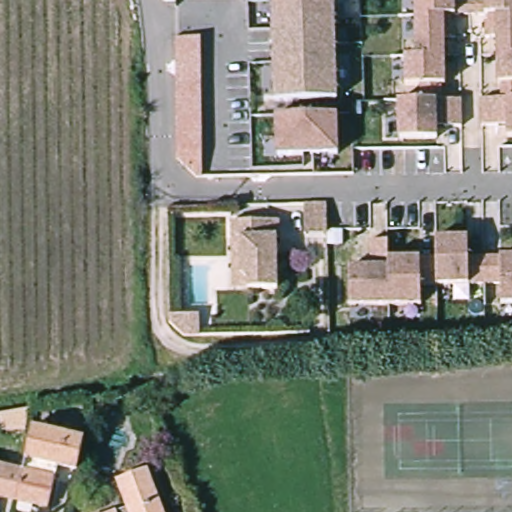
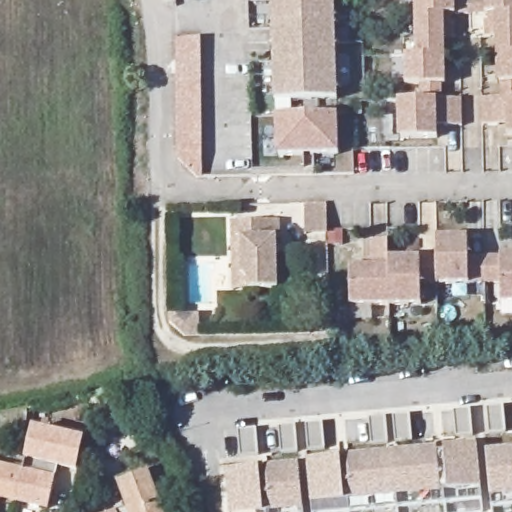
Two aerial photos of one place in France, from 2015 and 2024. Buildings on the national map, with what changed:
unchanged [(269,0),(330,0),(330,90),(268,90),(269,0)]
unchanged [(415,15),(415,0),(455,0),(470,0),(470,14),(444,14),(434,14),(415,15)]
unchanged [(470,0),(512,0),(512,12),(496,13),(470,14),(470,0)]
unchanged [(496,36),(485,37),(485,22),(496,21),(496,13),(512,12),(512,52),(497,53),(496,36)]
unchanged [(445,23),(456,23),(457,38),(446,38),(446,54),(435,54),(416,55),(415,15),(434,14),(444,14),(445,23)]
unchanged [(196,35),(199,175),(194,176),(174,156),(171,36),(196,35)]
unchanged [(502,82),(498,82),(497,53),(512,52),(512,97),(502,97),(502,82)]
unchanged [(422,84),(407,84),(406,55),(416,55),(435,54),(446,54),(447,84),(443,84),(443,99),(436,99),(422,99),(422,84)]
unchanged [(502,97),(512,97),(512,135),(508,135),(508,124),(483,124),(482,98),(502,97)]
unchanged [(439,125),(439,137),(437,137),(401,138),(400,99),(422,99),(436,99),(443,99),(463,98),(464,125),(439,125)]
unchanged [(273,115),(335,115),(335,155),(273,155),(273,115)]
unchanged [(326,233),(302,233),(302,213),(302,203),(325,203),(326,233)]
unchanged [(436,237),(435,217),(467,217),(468,237),(484,236),(485,263),(437,264),(436,237)]
unchanged [(351,287),(350,248),(371,248),(370,222),(387,221),(388,239),(389,285),(351,287)]
unchanged [(232,259),(240,259),(240,241),(231,241),(231,224),(280,224),(280,242),(269,241),(270,258),(277,258),(277,293),(248,293),(232,293),(232,259)]
unchanged [(512,282),(501,283),(501,263),(485,263),(484,236),(512,235),(512,282)]
unchanged [(436,237),(437,264),(421,265),(421,285),(389,285),(388,239),(436,237)]
new [(505,408),(507,436),(490,437),(488,409),(505,408)]
new [(455,412),(473,411),(474,438),(457,439),(455,412)]
new [(413,417),(414,444),(397,445),(396,418),(413,417)]
new [(389,419),(390,446),(373,447),(371,419),(389,419)]
new [(307,425),(324,424),(326,452),(309,453),(307,425)]
new [(281,454),(280,428),(297,427),(299,454),(281,454)]
unchanged [(32,429),(83,441),(77,472),(57,467),(47,509),(15,501),(22,471),(32,429)]
new [(242,457),(240,429),(258,429),(260,456),(242,457)]
new [(482,501),(359,512),(311,512),(305,461),(475,444),(482,501)]
new [(485,451),(512,448),(512,506),(490,509),(485,451)]
new [(224,470),(297,464),(302,512),(228,512),(224,470)]
unchanged [(15,501),(0,497),(0,466),(22,471),(15,501)]
unchanged [(127,509),(118,481),(147,471),(162,512),(118,512),(127,509)]

